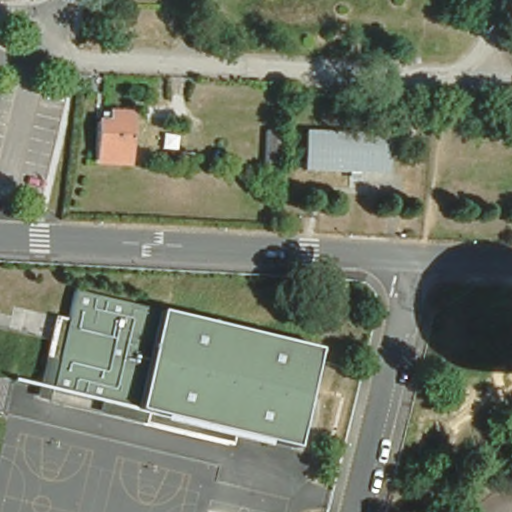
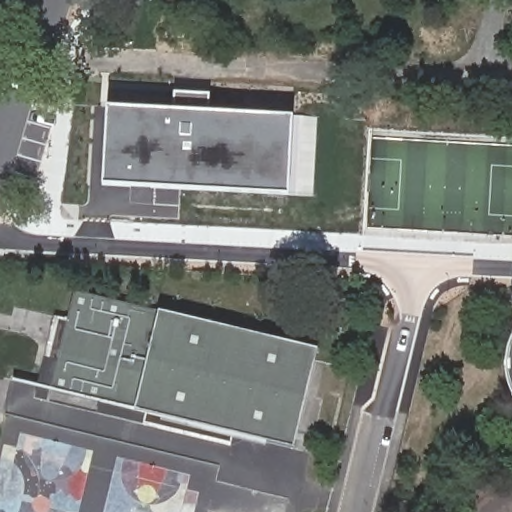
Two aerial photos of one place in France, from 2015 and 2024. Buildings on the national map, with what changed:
new [(100,192),(101,108),(286,118),(283,191),(100,192)]
demolished [(304,119),(341,124),(336,169),(301,165),(297,165),(302,119),(304,119)]
demolished [(90,130),(103,130),(103,121),(127,122),(125,170),(89,169),(90,130)]
demolished [(261,136),(277,137),(277,168),(260,167),(261,136)]
unchanged [(313,360),(293,449),(45,391),(65,303),(313,360)]

